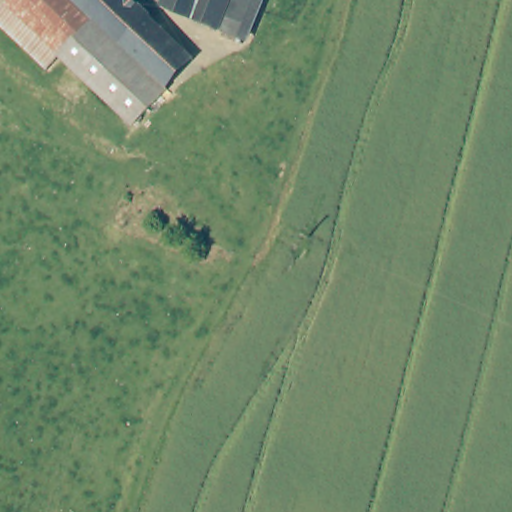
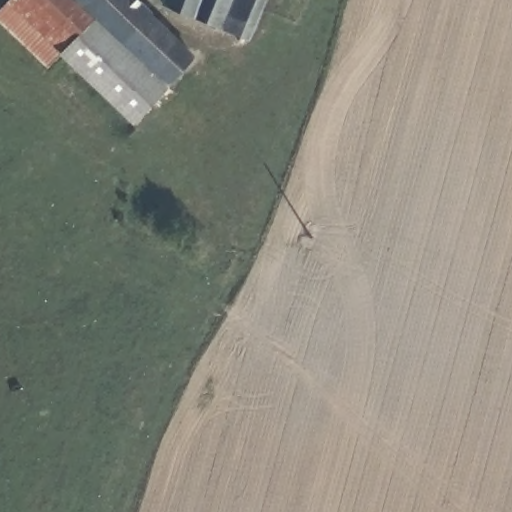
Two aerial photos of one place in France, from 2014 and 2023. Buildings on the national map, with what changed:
unchanged [(48,66),(0,20),(0,3),(3,0),(80,0),(96,15),(70,42),(48,66)]
unchanged [(80,0),(142,0),(154,11),(151,14),(190,51),(162,79),(96,15),(80,0)]
unchanged [(163,0),(228,0),(218,24),(163,0)]
unchanged [(223,26),(234,0),(266,0),(251,37),(223,26)]
unchanged [(96,15),(162,79),(166,82),(140,110),(70,42),(96,15)]

